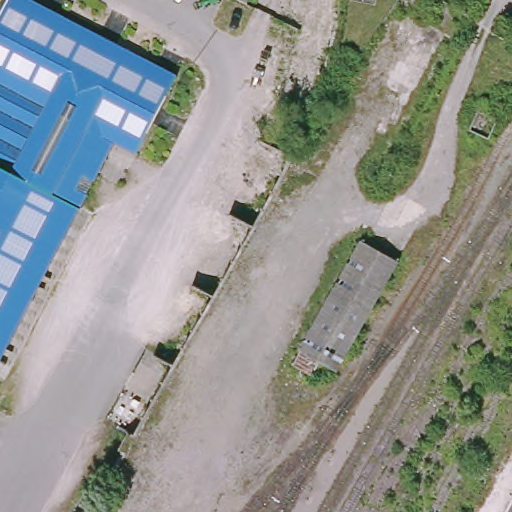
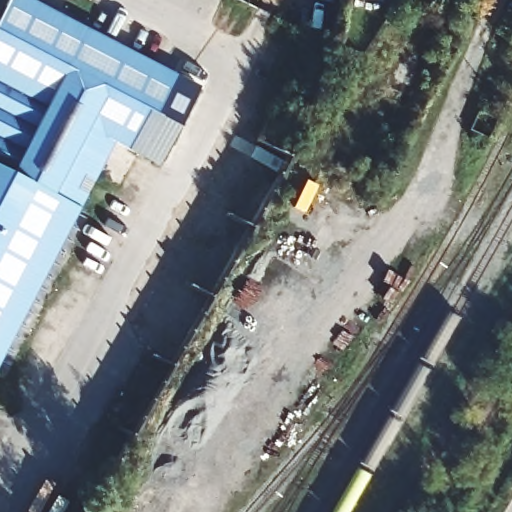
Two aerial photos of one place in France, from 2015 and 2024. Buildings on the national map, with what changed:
unchanged [(135,137),(116,129),(8,368),(0,364),(0,0),(18,0),(168,63),(135,137)]
demolished [(398,264),(337,379),(301,353),(361,244),(398,264)]

